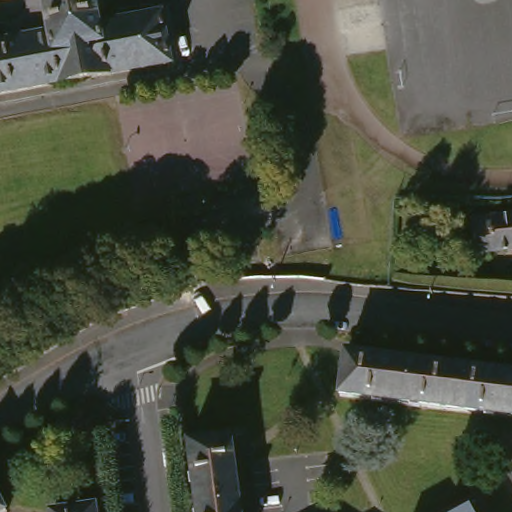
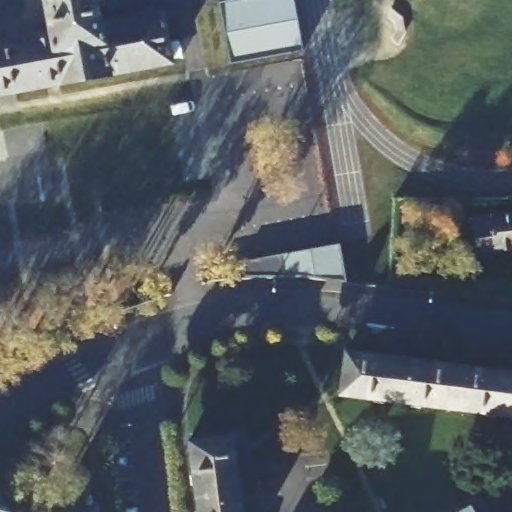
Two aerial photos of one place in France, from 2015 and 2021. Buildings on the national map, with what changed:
unchanged [(0,45),(0,26),(29,20),(43,5),(42,0),(57,0),(63,33),(0,45)]
unchanged [(112,24),(174,12),(183,63),(0,96),(0,45),(63,33),(57,0),(108,0),(112,24)]
new [(234,0),(296,0),(304,51),(231,64),(220,2),(234,0)]
unchanged [(496,252),(491,230),(489,218),(492,217),(512,214),(512,249),(496,252)]
new [(335,244),(342,284),(299,278),(240,279),(237,260),(335,244)]
unchanged [(469,361),(463,405),(405,397),(350,390),(356,347),(469,361)]
unchanged [(463,405),(469,361),(512,367),(512,411),(463,405)]
unchanged [(240,436),(240,437),(251,512),(207,512),(198,440),(240,436)]
unchanged [(0,512),(0,481),(14,506),(16,511),(15,512),(0,512)]
unchanged [(107,512),(62,512),(106,506),(107,512)]
unchanged [(473,512),(459,512),(470,506),(473,512)]

